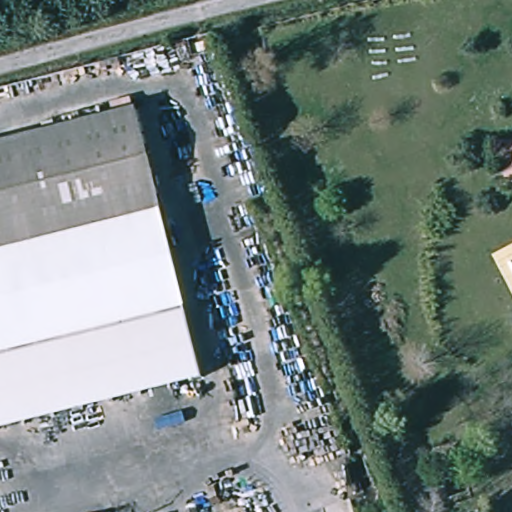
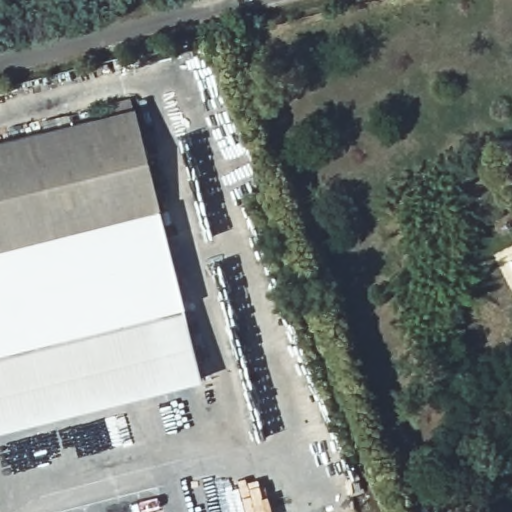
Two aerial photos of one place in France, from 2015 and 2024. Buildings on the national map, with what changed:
unchanged [(186,307),(0,352),(0,139),(133,105),(186,307)]
unchanged [(504,176),(506,141),(512,141),(512,181),(504,176)]
unchanged [(201,377),(0,427),(0,352),(186,307),(201,377)]

